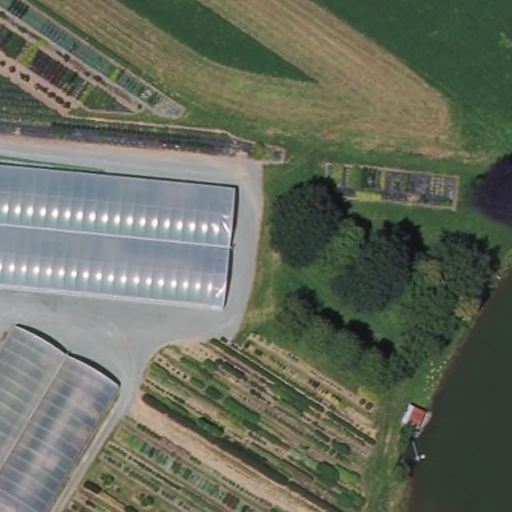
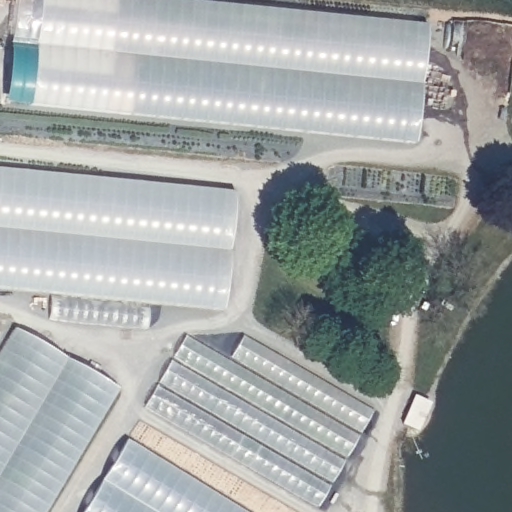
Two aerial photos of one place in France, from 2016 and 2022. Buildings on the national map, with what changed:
new [(15,0),(189,0),(427,24),(414,142),(5,100),(15,0)]
unchanged [(224,310),(0,287),(0,170),(235,193),(224,310)]
unchanged [(15,328),(117,389),(45,512),(0,512),(0,354),(15,328)]
new [(144,405),(186,335),(229,359),(243,335),(372,410),(317,506),(144,405)]

